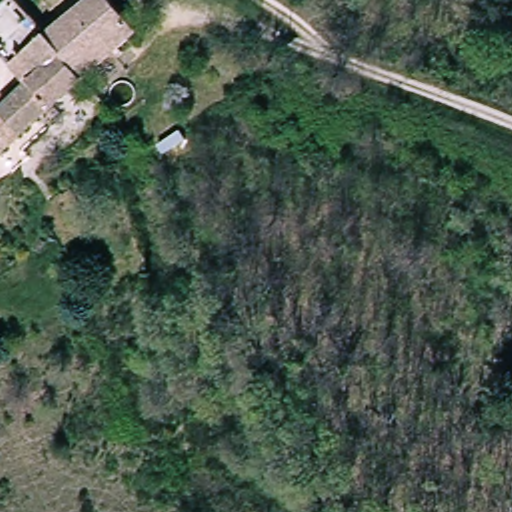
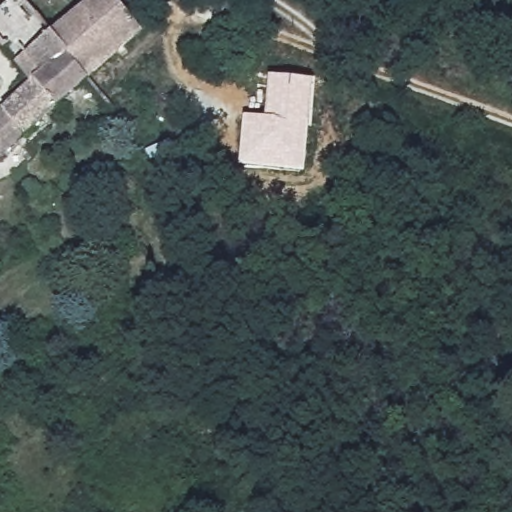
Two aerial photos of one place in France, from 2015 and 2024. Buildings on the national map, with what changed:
new [(0,45),(0,9),(11,0),(23,0),(52,35),(17,65),(0,45)]
unchanged [(94,0),(103,0),(136,33),(88,76),(52,35),(94,0)]
unchanged [(88,76),(3,152),(0,150),(0,110),(30,83),(17,65),(52,35),(88,76)]
new [(239,163),(244,116),(265,117),(269,76),(312,80),(304,171),(239,163)]

